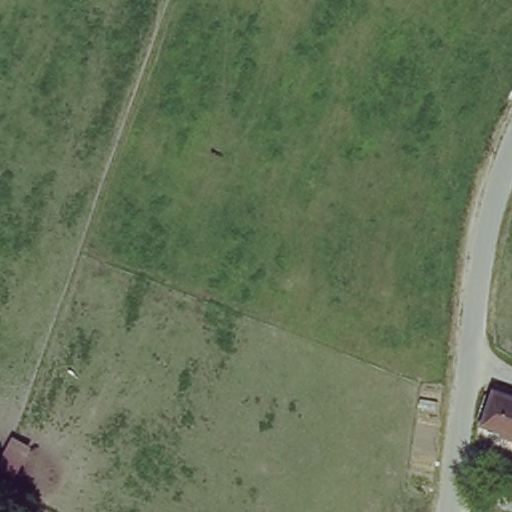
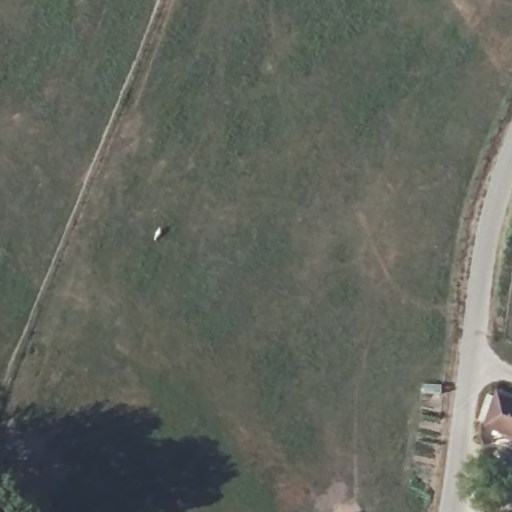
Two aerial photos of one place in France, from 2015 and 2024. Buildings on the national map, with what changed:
unchanged [(512,393),(512,433),(490,426),(502,389),(512,393)]

